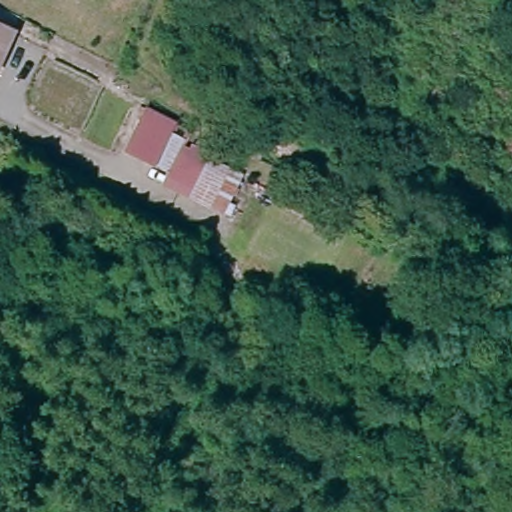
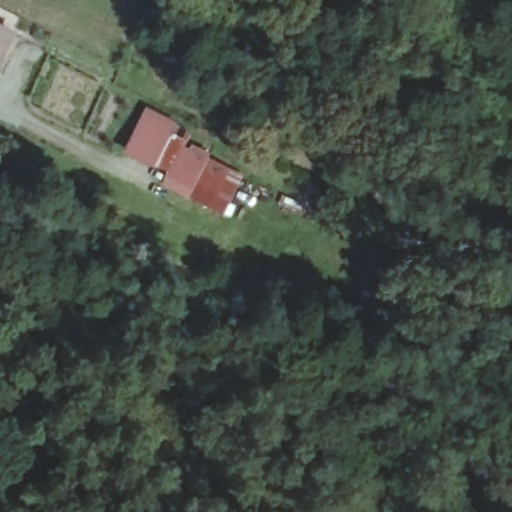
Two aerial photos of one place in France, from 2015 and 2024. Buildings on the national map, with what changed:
unchanged [(4,25),(0,36),(0,24),(4,25)]
unchanged [(121,151),(143,112),(173,126),(169,132),(183,140),(179,147),(166,174),(121,151)]
unchanged [(179,147),(225,170),(216,187),(229,195),(218,215),(158,185),(166,174),(179,147)]

